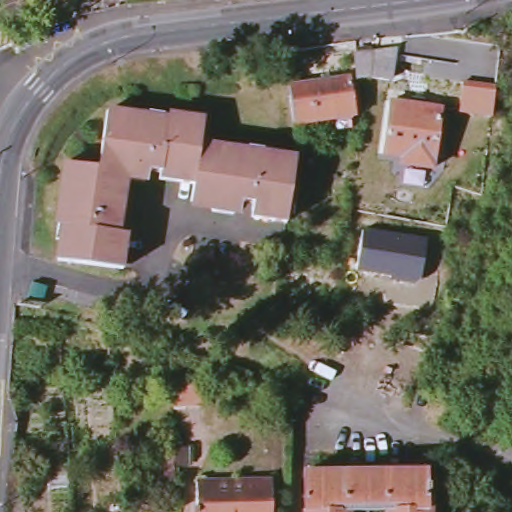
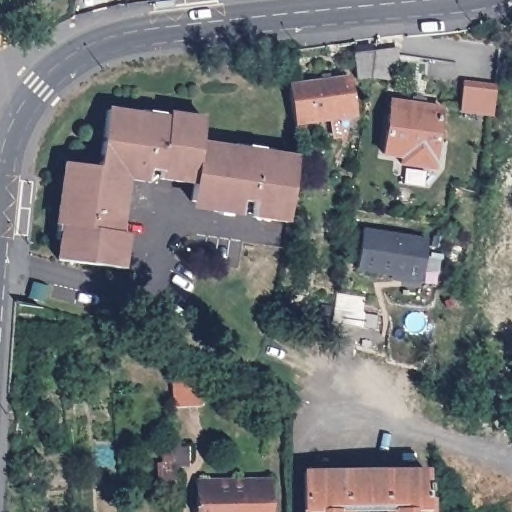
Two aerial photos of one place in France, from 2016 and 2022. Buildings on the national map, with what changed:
unchanged [(358,81),(355,47),(377,44),(398,42),(391,83),(372,80),(358,81)]
unchanged [(290,87),(349,80),(354,118),(295,127),(290,87)]
unchanged [(495,84),(492,116),(460,112),(464,80),(495,84)]
unchanged [(403,161),(405,153),(386,151),(392,101),(441,106),(433,165),(403,161)]
unchanged [(295,163),(288,211),(253,206),(253,198),(242,196),(242,204),(192,196),(196,171),(152,166),(150,171),(119,165),(115,195),(120,196),(115,226),(122,229),(117,263),(59,254),(65,208),(60,206),(68,158),(100,163),(109,106),(169,116),(170,109),(205,114),(201,139),(297,153),(295,163)]
unchanged [(426,238),(420,279),(415,284),(391,281),(392,276),(357,270),(365,229),(426,238)]
unchanged [(168,382),(195,379),(196,379),(198,404),(170,407),(168,382)]
unchanged [(160,489),(158,462),(176,461),(177,488),(160,489)]
unchanged [(387,510),(347,511),(348,512),(307,512),(306,471),(427,470),(428,512),(387,512),(387,510)]
unchanged [(198,480),(274,480),(275,512),(198,512),(198,480)]

